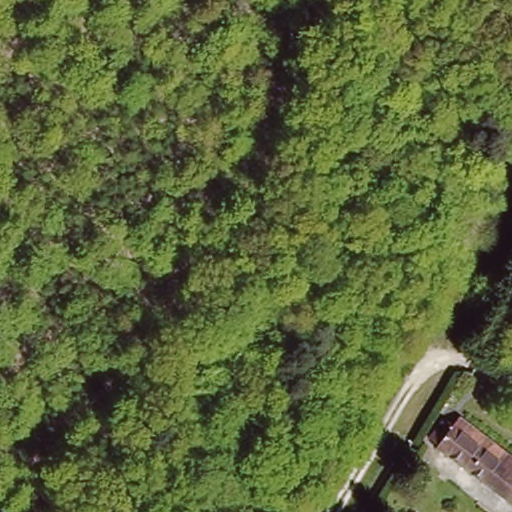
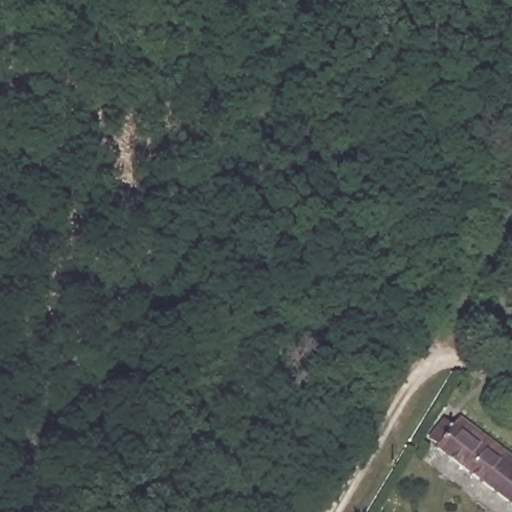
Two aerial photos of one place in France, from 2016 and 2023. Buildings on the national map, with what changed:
unchanged [(430,443),(446,424),(455,432),(462,424),(512,463),(512,511),(438,454),(440,451),(430,443)]

